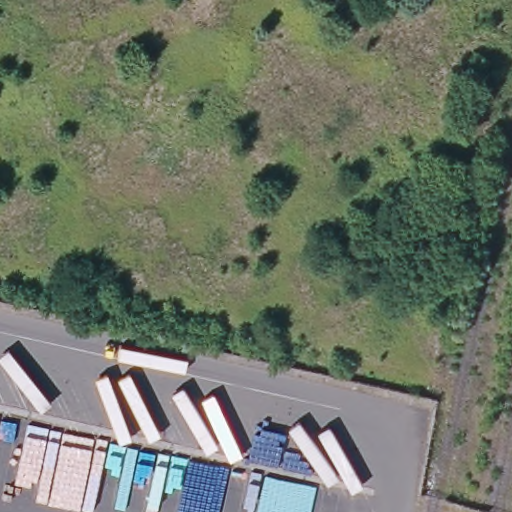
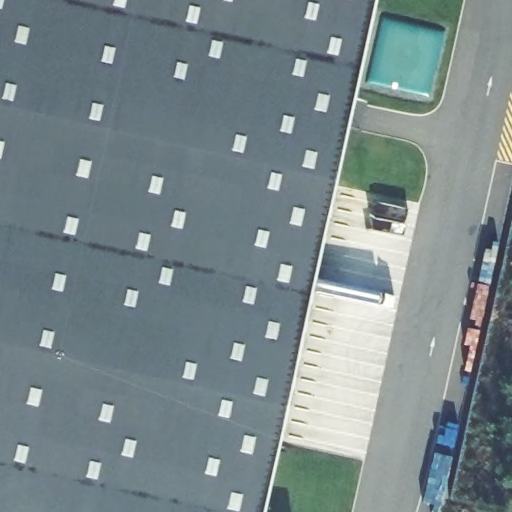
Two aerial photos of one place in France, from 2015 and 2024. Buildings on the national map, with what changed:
new [(0,0),(374,0),(258,512),(0,512),(0,0)]

